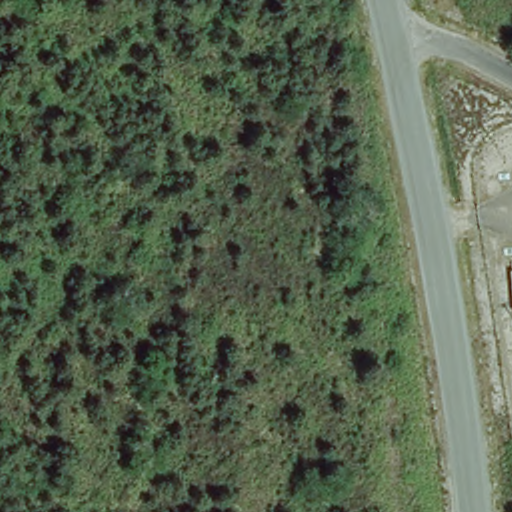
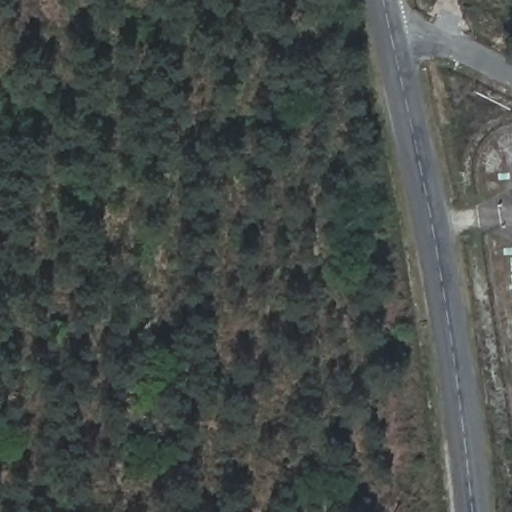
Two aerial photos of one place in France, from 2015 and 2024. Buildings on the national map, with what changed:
unchanged [(512,272),(509,272),(508,263),(512,263),(512,272)]
unchanged [(512,304),(510,279),(512,279),(512,304)]

